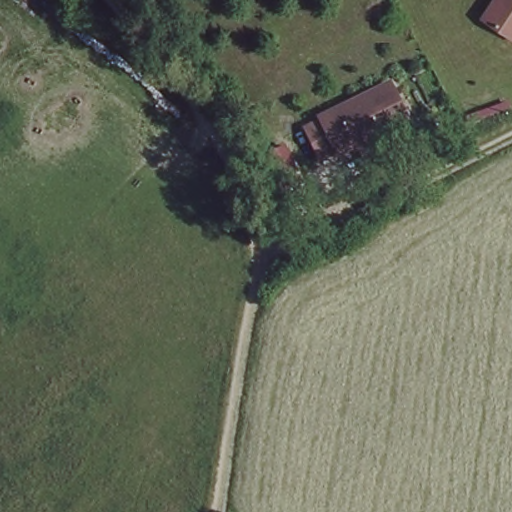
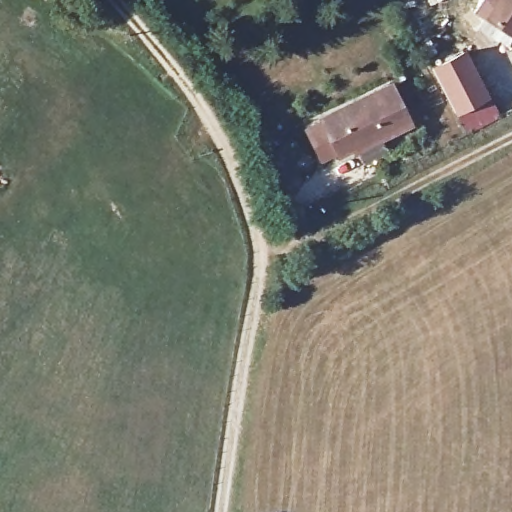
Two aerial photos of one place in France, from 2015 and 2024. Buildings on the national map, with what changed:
unchanged [(512,0),(512,31),(491,16),(487,13),(496,0),(512,0)]
new [(457,115),(431,68),(465,51),(491,98),(457,115)]
unchanged [(306,124),(321,117),(319,113),(389,78),(408,118),(353,144),(351,141),(337,148),(335,144),(320,151),(306,124)]

